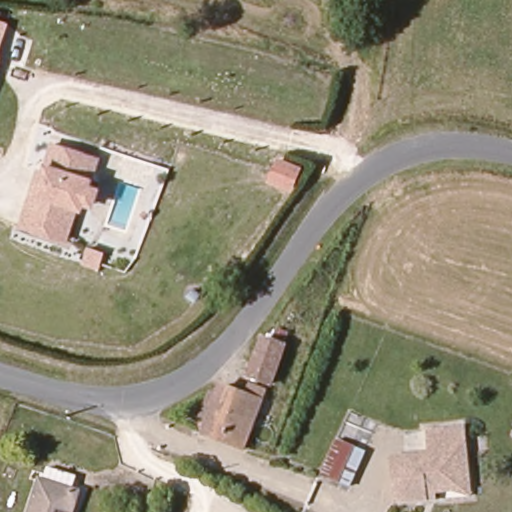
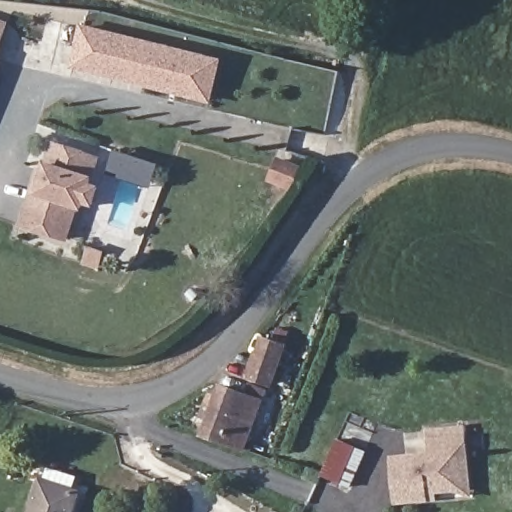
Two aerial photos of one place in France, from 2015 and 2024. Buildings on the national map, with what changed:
new [(0,19),(10,23),(0,54),(0,19)]
new [(212,105),(70,69),(80,24),(224,59),(212,105)]
unchanged [(0,54),(4,55),(0,66),(0,54)]
unchanged [(92,210),(77,205),(66,238),(22,228),(50,142),(79,150),(81,137),(100,144),(91,175),(103,180),(92,210)]
unchanged [(266,384),(249,377),(264,338),(282,345),(266,384)]
unchanged [(223,382),(262,398),(244,442),(230,436),(205,427),(223,382)]
unchanged [(427,500),(397,501),(393,455),(431,453),(429,428),(442,427),(466,426),(467,435),(468,452),(471,496),(427,500)]
unchanged [(348,487),(320,475),(337,437),(365,450),(348,487)]
unchanged [(86,492),(79,512),(38,512),(50,479),(86,492)]

